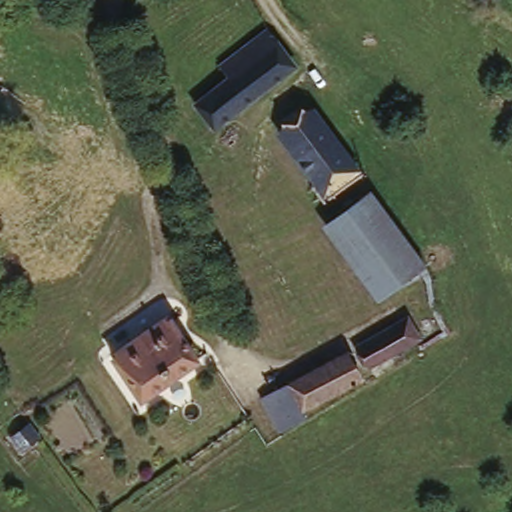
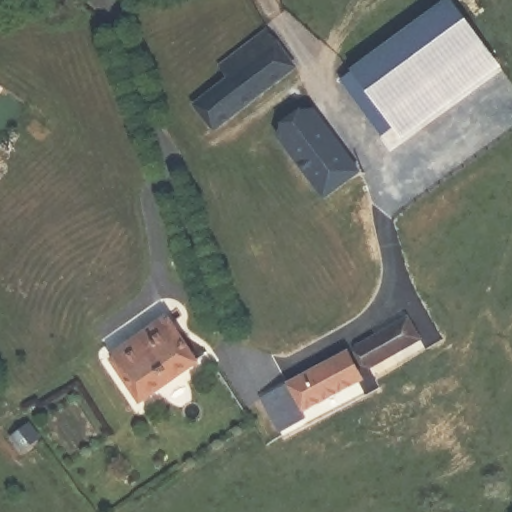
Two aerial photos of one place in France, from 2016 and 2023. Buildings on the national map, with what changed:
new [(440,0),(463,0),(495,47),(396,122),(357,66),(440,0)]
unchanged [(213,129),(194,104),(231,76),(223,67),(267,32),(276,42),(293,69),(213,129)]
new [(495,47),(505,60),(405,135),(396,122),(495,47)]
new [(357,66),(396,122),(382,133),(345,75),(357,66)]
unchanged [(361,169),(326,196),(278,132),(311,106),(361,169)]
unchanged [(166,318),(195,360),(139,397),(110,355),(142,335),(166,318)]
unchanged [(369,367),(358,347),(393,327),(406,320),(419,337),(406,343),(407,345),(369,367)]
unchanged [(342,352),(356,375),(309,401),(312,406),(277,425),(259,395),(342,352)]

